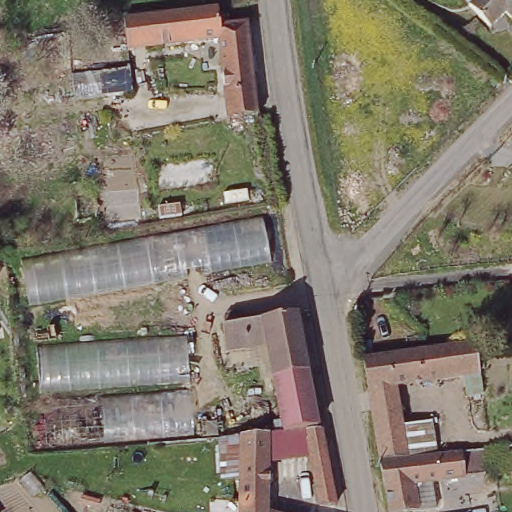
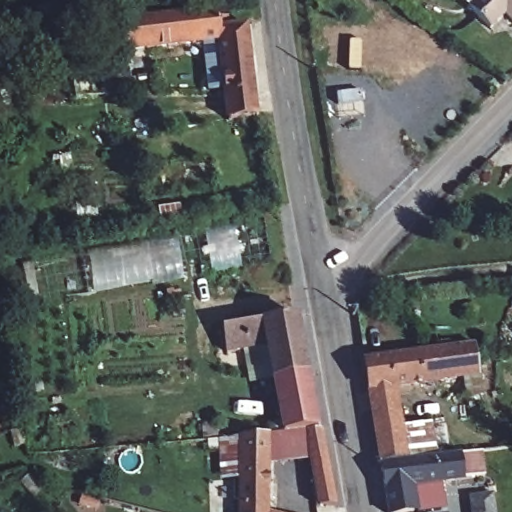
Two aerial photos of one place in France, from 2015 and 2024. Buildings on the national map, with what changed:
new [(466,0),(473,0),(469,4),(466,0)]
unchanged [(497,26),(476,5),(480,0),(512,0),(512,14),(511,12),(497,26)]
unchanged [(208,14),(211,42),(123,60),(118,27),(208,14)]
unchanged [(241,37),(252,123),(223,129),(211,42),(241,37)]
unchanged [(241,222),(247,266),(27,306),(18,261),(241,222)]
unchanged [(291,312),(315,427),(303,428),(274,432),(272,433),(271,420),(277,418),(264,343),(224,350),(219,326),(291,312)]
demolished [(187,342),(197,440),(44,452),(38,352),(187,342)]
unchanged [(381,467),(359,362),(470,343),(474,363),(478,393),(462,396),(459,376),(393,387),(401,429),(431,424),(434,457),(458,453),(487,448),(493,473),(463,478),(434,483),(439,508),(422,512),(390,512),(381,467)]
unchanged [(223,440),(272,433),(274,432),(303,428),(315,427),(319,427),(335,502),(317,497),(305,440),(263,447),(270,512),(235,512),(235,508),(243,508),(243,507),(238,465),(233,466),(231,462),(219,462),(216,441),(223,440)]

